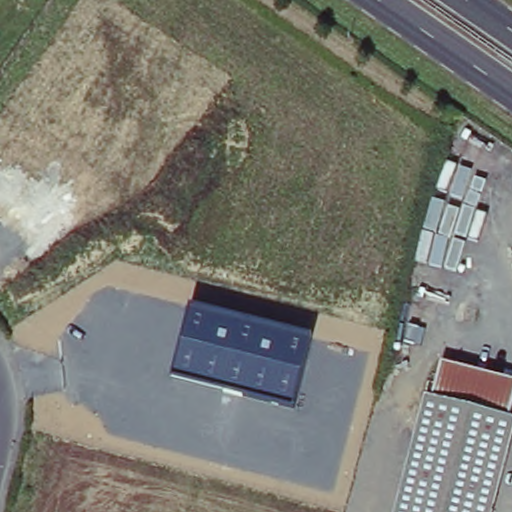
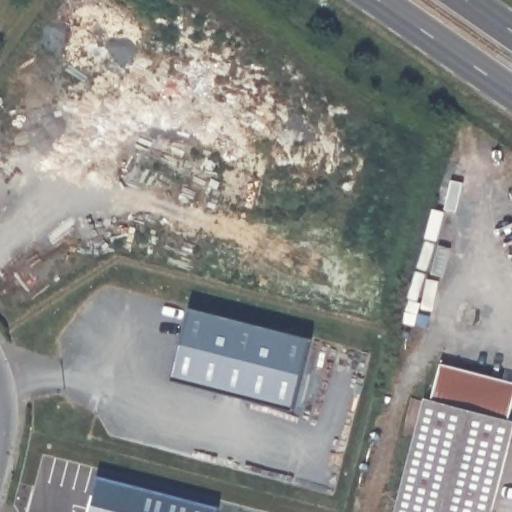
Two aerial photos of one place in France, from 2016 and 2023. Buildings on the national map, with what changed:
unchanged [(313,338),(294,410),(172,379),(190,307),(313,338)]
unchanged [(434,394),(442,358),(512,377),(512,407),(510,415),(512,416),(512,436),(492,512),(396,512),(427,392),(434,394)]
new [(214,512),(85,512),(97,467),(218,498),(214,512)]

